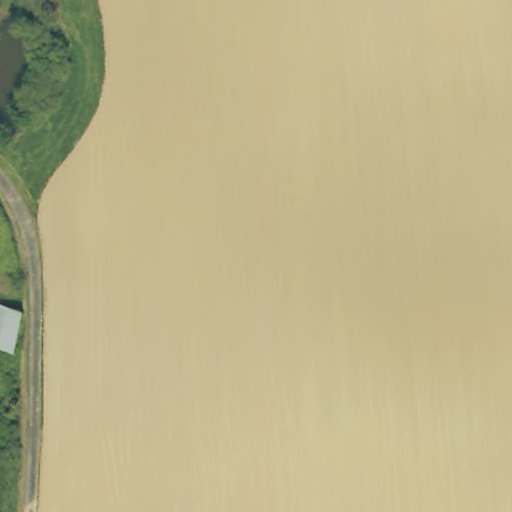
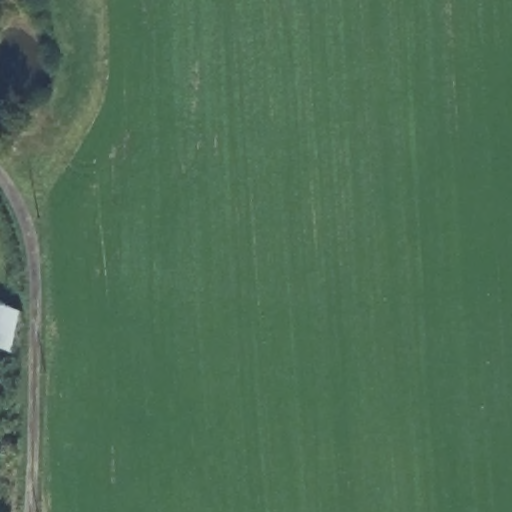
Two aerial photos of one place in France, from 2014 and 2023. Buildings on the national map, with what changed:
unchanged [(7,343),(6,352),(0,350),(0,309),(15,315),(7,343)]

